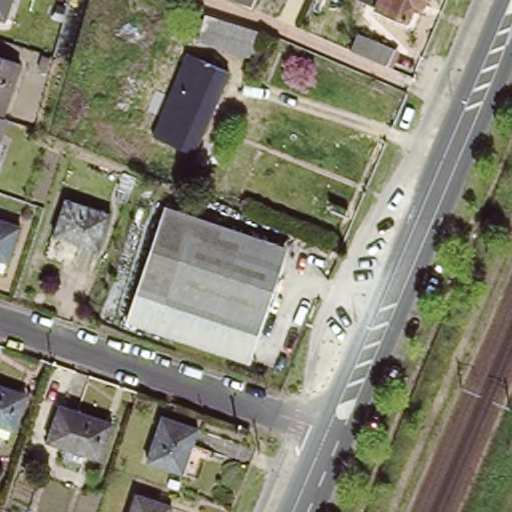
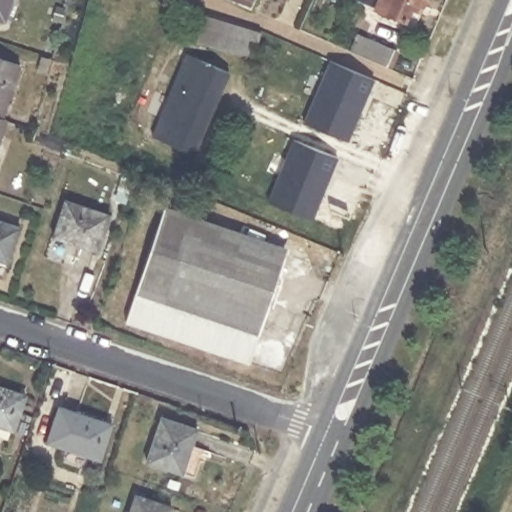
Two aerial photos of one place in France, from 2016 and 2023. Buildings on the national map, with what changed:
unchanged [(0,23),(0,0),(11,0),(3,24),(0,23)]
unchanged [(242,0),(250,0),(248,3),(242,0)]
new [(416,10),(407,14),(404,21),(360,0),(426,0),(421,12),(416,10)]
demolished [(386,1),(383,0),(410,0),(405,11),(384,3),(386,1)]
demolished [(417,0),(416,2),(410,0),(417,0)]
unchanged [(260,30),(253,53),(252,55),(197,39),(204,13),(260,30)]
unchanged [(358,34),(394,50),(387,67),(351,51),(358,34)]
unchanged [(231,70),(201,160),(151,144),(180,54),(231,70)]
unchanged [(0,116),(0,58),(18,65),(1,116),(0,116)]
new [(304,121),(329,60),(372,80),(346,140),(304,121)]
unchanged [(5,118),(0,133),(0,116),(1,116),(5,118)]
new [(294,139),(338,156),(314,219),(269,200),(294,139)]
unchanged [(104,215),(92,250),(48,235),(60,200),(104,215)]
unchanged [(186,237),(163,306),(134,296),(164,210),(286,253),(281,270),(186,237)]
unchanged [(22,226),(4,279),(0,278),(0,219),(22,226)]
unchanged [(247,367),(124,325),(134,296),(163,306),(186,237),(281,270),(247,367)]
unchanged [(24,395),(13,430),(0,426),(0,387),(24,395)]
unchanged [(107,425),(95,460),(44,443),(56,407),(107,425)]
unchanged [(198,428),(183,472),(148,460),(163,416),(198,428)]
unchanged [(173,506),(171,512),(132,512),(138,495),(173,506)]

